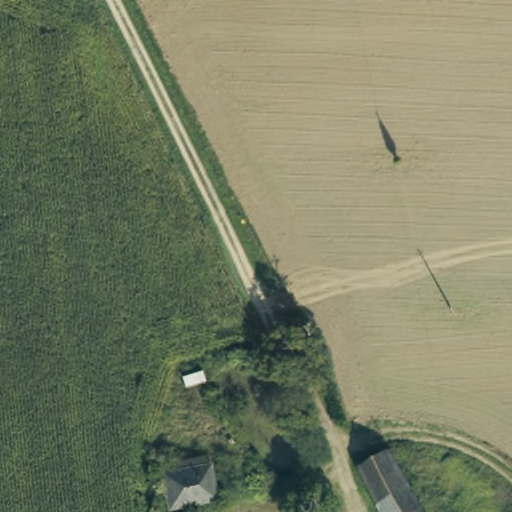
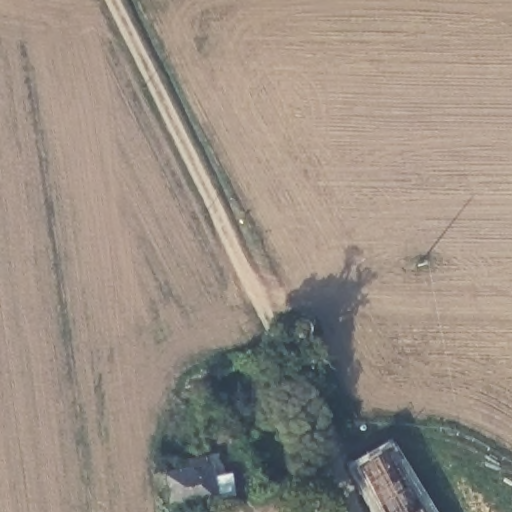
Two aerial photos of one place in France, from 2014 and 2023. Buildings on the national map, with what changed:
unchanged [(366,463),(387,452),(423,512),(382,512),(359,467),(366,463)]
unchanged [(168,511),(161,475),(205,465),(214,500),(168,511)]

